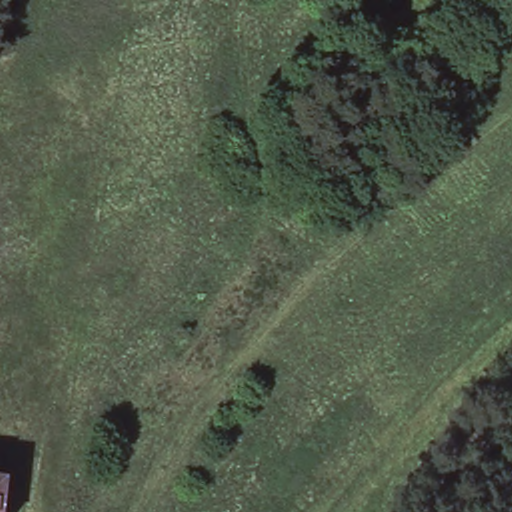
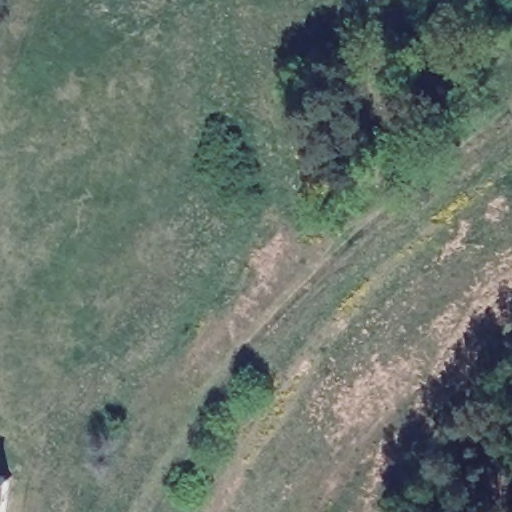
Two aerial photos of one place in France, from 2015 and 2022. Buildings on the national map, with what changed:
unchanged [(6,512),(0,512),(0,476),(10,477),(6,512)]

